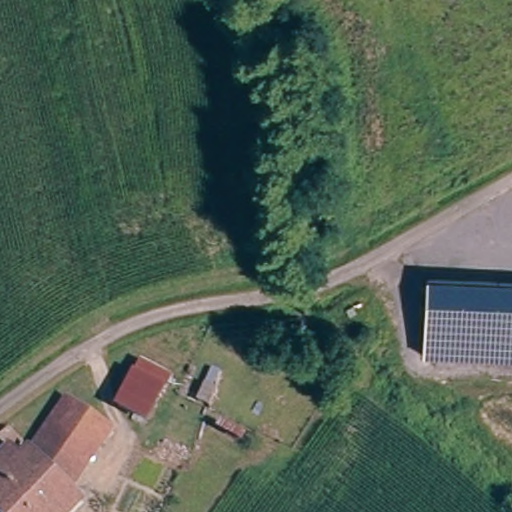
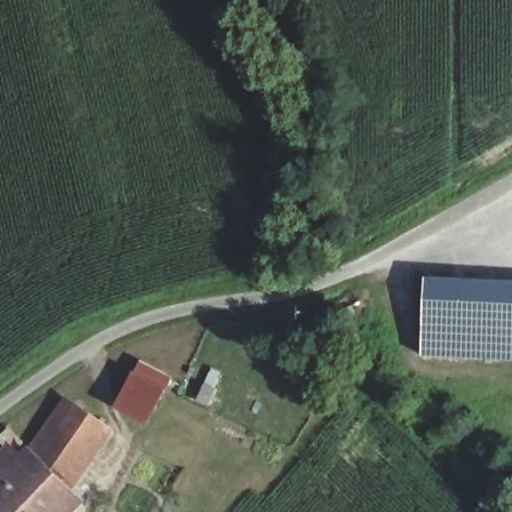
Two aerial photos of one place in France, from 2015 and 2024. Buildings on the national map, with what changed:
unchanged [(512,280),(512,359),(422,355),(426,275),(512,280)]
unchanged [(140,364),(170,380),(149,422),(119,407),(140,364)]
unchanged [(71,490),(82,500),(71,512),(0,512),(0,457),(4,452),(0,447),(0,439),(4,432),(23,445),(16,453),(24,459),(67,399),(92,417),(53,472),(71,490)]
unchanged [(113,431),(71,490),(53,472),(92,417),(113,431)]

